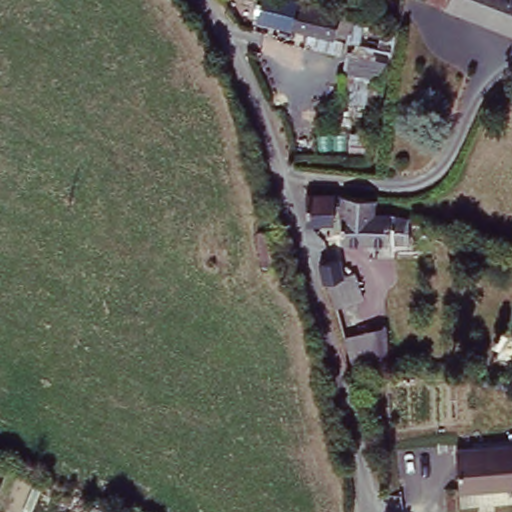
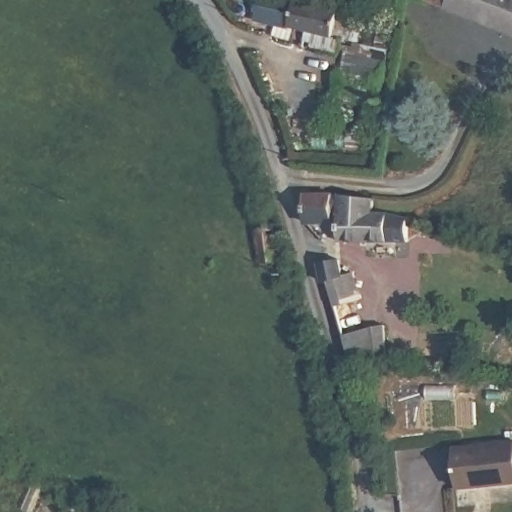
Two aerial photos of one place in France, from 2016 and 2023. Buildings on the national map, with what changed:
unchanged [(337,7),(336,17),(360,20),(357,41),(389,44),(385,97),(371,99),(372,80),(340,76),(340,53),(327,52),(330,39),(256,24),(260,0),(303,0),(337,7)]
unchanged [(512,28),(509,35),(432,3),(433,0),(512,0),(512,28)]
unchanged [(330,229),(305,229),(304,196),(331,196),(330,229)]
unchanged [(341,197),(373,197),(373,211),(408,216),(408,244),(340,243),(341,197)]
unchanged [(320,262),(340,262),(345,281),(360,278),(367,300),(340,313),(333,285),(327,287),(320,262)]
unchanged [(388,324),(397,322),(400,343),(391,344),(388,324)]
unchanged [(343,342),(383,327),(390,365),(352,373),(343,342)]
unchanged [(512,447),(512,489),(450,487),(452,444),(512,447)]

